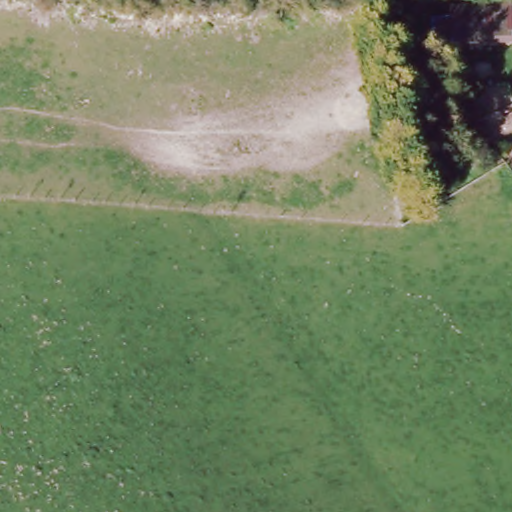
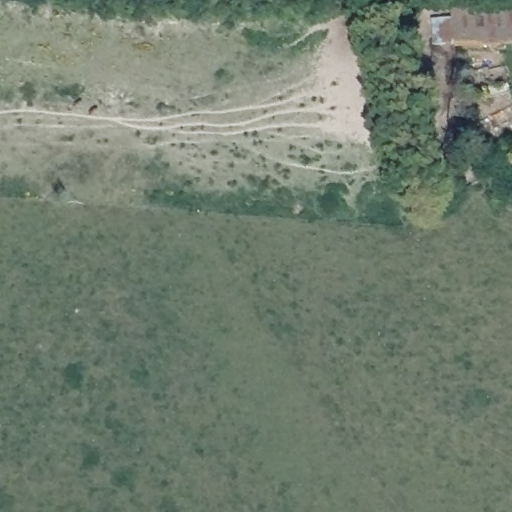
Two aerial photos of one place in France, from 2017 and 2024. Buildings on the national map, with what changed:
unchanged [(452,5),(512,4),(512,40),(454,42),(452,5)]

